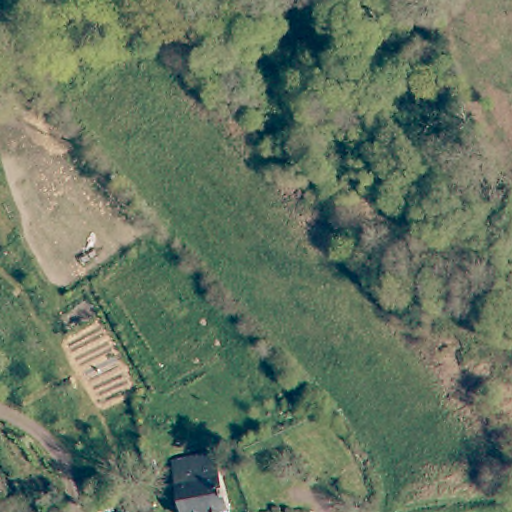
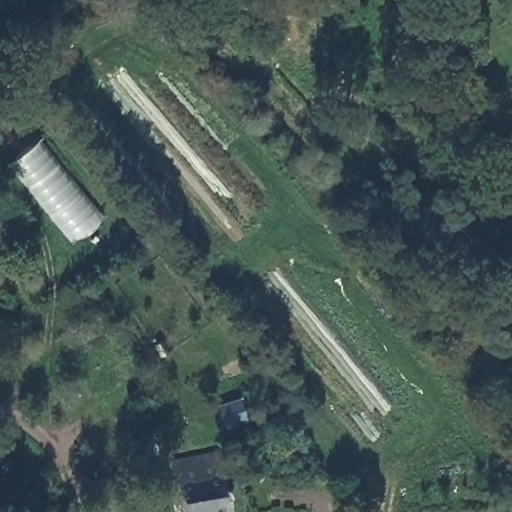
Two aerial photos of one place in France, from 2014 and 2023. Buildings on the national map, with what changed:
new [(74,242),(10,164),(41,139),(102,218),(74,242)]
unchanged [(187,512),(183,490),(179,465),(190,464),(218,459),(222,486),(226,512),(187,512)]
unchanged [(118,482),(119,490),(123,512),(90,512),(86,489),(118,482)]

